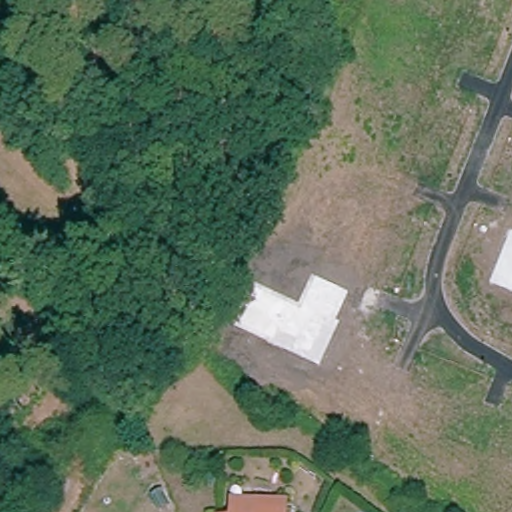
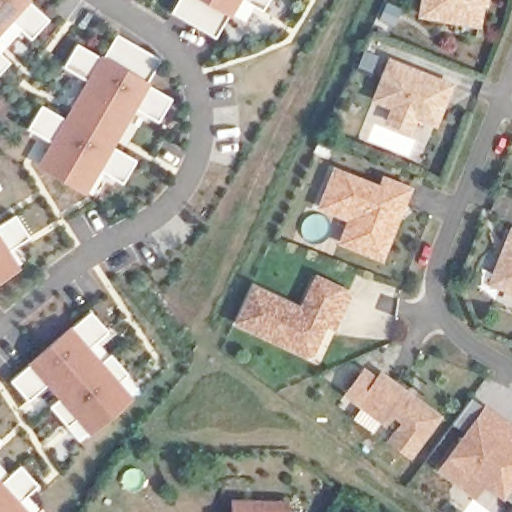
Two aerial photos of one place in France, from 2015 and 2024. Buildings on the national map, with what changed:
new [(31,38),(12,20),(0,34),(0,0),(31,0),(30,1),(50,19),(31,38)]
new [(231,15),(227,14),(216,34),(174,10),(179,0),(240,0),(231,15)]
new [(261,10),(245,0),(267,0),(261,10)]
new [(417,16),(420,0),(489,0),(488,7),(483,6),(480,26),(417,16)]
new [(159,121),(135,108),(115,145),(137,159),(122,182),(99,169),(85,191),(37,165),(51,140),(27,126),(41,103),(64,117),(86,79),(64,65),(77,42),(100,56),(102,53),(105,55),(117,34),(160,59),(149,80),(152,82),(151,84),(172,97),(159,121)]
new [(10,62),(0,73),(0,52),(10,62)]
new [(369,95),(385,56),(445,81),(430,120),(411,112),(405,126),(382,117),(387,103),(369,95)]
unchanged [(315,203),(330,165),(375,184),(378,175),(403,185),(397,200),(393,199),(385,220),(388,221),(375,254),(350,244),(335,238),(345,215),(315,203)]
new [(1,187),(0,188),(0,185),(1,187)]
new [(0,279),(0,223),(15,214),(30,236),(9,250),(20,267),(0,279)]
new [(508,227),(512,228),(512,291),(490,284),(508,227)]
new [(335,330),(326,326),(311,356),(234,321),(251,283),(299,304),(313,273),(354,290),(335,330)]
new [(89,433),(76,418),(68,425),(51,405),(60,398),(47,384),(29,400),(10,379),(30,363),(27,361),(71,323),(73,325),(90,310),(109,330),(90,346),(102,360),(111,352),(130,373),(120,380),(134,396),(89,433)]
unchanged [(402,391),(409,396),(432,414),(404,452),(383,437),(398,417),(387,409),(380,420),(353,400),(340,390),(358,367),(371,377),(375,370),(402,391)]
new [(435,465),(460,430),(447,420),(465,395),(479,405),(493,415),(512,429),(512,503),(495,491),(483,482),(458,465),(450,477),(435,465)]
new [(2,440),(0,442),(0,438),(2,440)]
new [(2,480),(20,465),(39,485),(21,500),(32,512),(0,512),(0,478),(2,480)]
unchanged [(282,512),(227,512),(227,499),(282,500),(282,512)]

